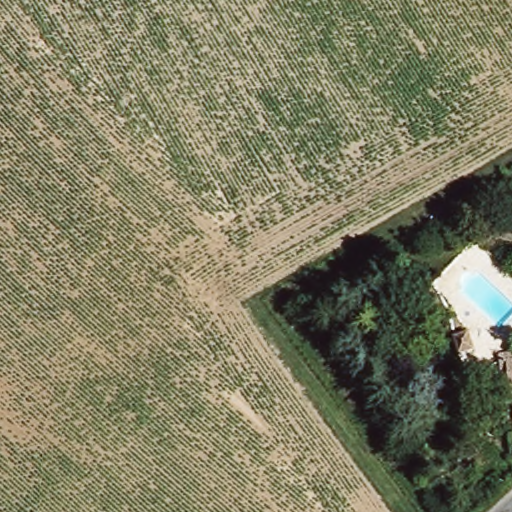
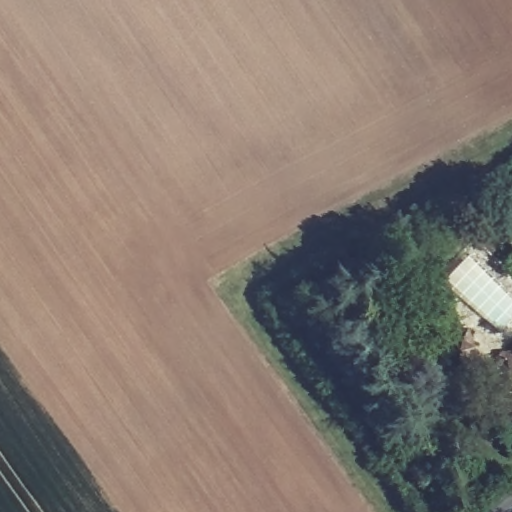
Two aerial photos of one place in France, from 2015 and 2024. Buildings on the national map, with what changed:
unchanged [(506,428),(497,430),(492,410),(509,407),(506,390),(512,389),(512,449),(511,449),(506,428)]

